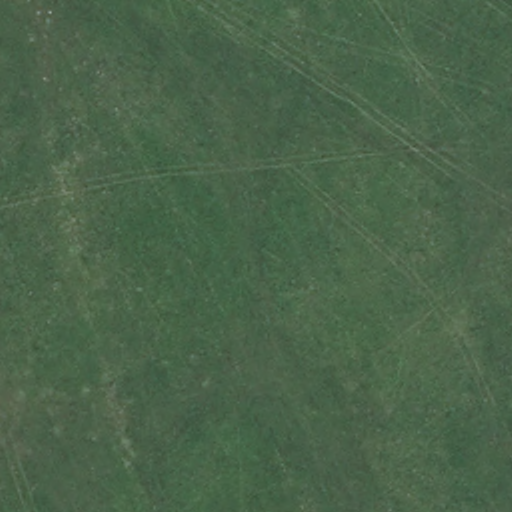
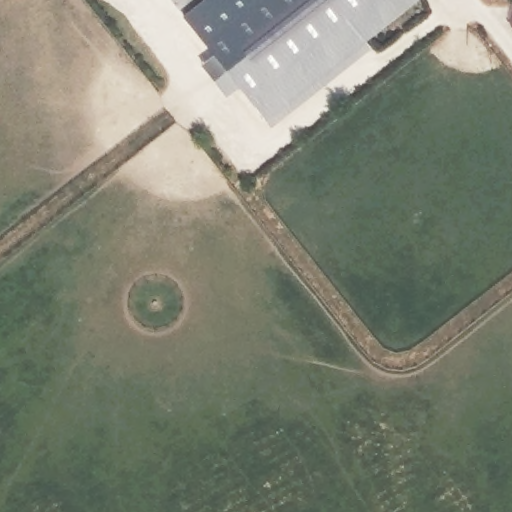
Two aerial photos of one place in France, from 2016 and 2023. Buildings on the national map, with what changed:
new [(264,0),(206,46),(184,19),(209,0),(264,0)]
new [(264,0),(418,0),(363,43),(345,21),(248,99),(239,88),(227,98),(202,67),(214,57),(206,46),(264,0)]
new [(345,21),(363,43),(370,51),(271,129),(265,121),(248,99),(345,21)]

